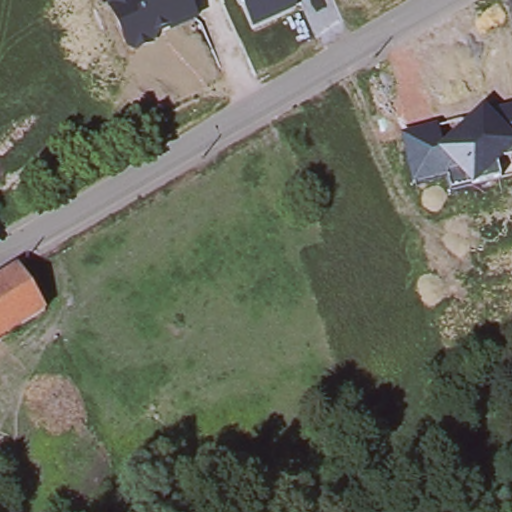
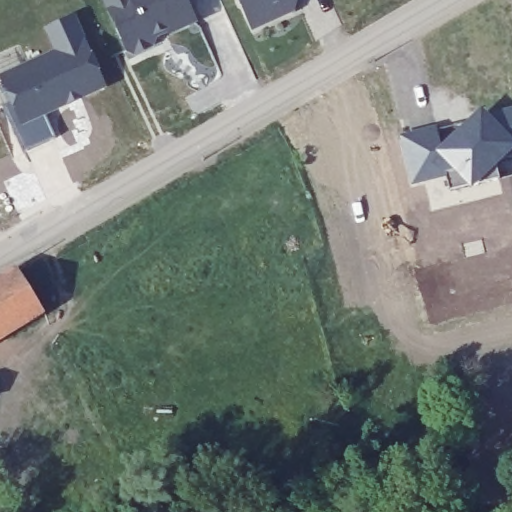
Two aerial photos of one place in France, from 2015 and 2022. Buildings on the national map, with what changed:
unchanged [(173,30),(171,24),(150,33),(156,41),(130,52),(110,11),(130,2),(130,0),(186,0),(196,18),(173,30)]
unchanged [(290,0),(288,1),(291,11),(254,24),(243,0),(290,0)]
new [(0,105),(0,104),(0,54),(19,45),(28,67),(61,52),(51,30),(75,19),(104,86),(45,113),(55,138),(25,151),(3,104),(0,105)]
demolished [(415,106),(400,117),(392,107),(406,96),(415,106)]
unchanged [(435,122),(440,141),(460,138),(455,115),(512,102),(512,168),(448,182),(445,168),(413,175),(403,129),(435,122)]
unchanged [(45,310),(0,337),(0,276),(17,266),(20,271),(45,310)]

